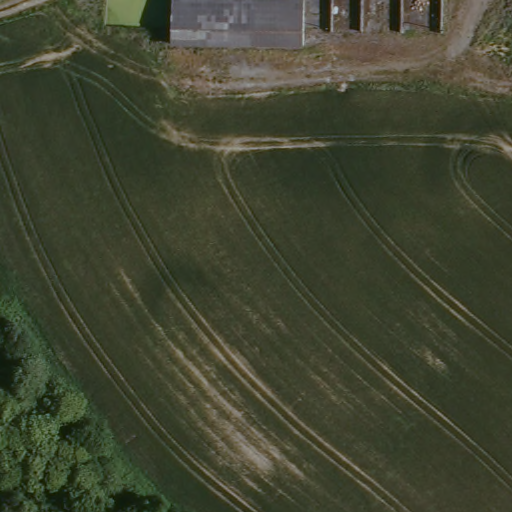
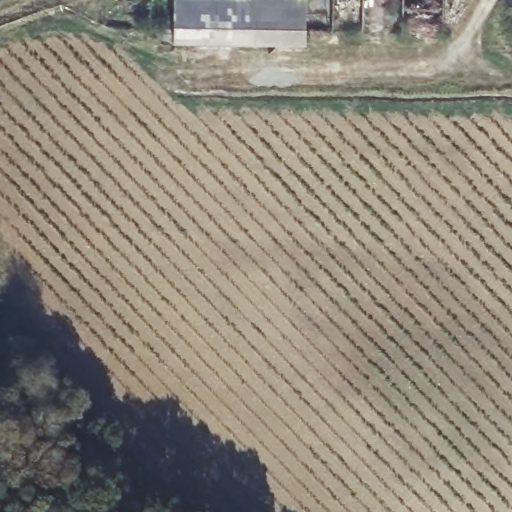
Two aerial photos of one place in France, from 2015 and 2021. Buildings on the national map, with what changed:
unchanged [(168,47),(168,0),(208,0),(248,0),(248,47),(168,47)]
unchanged [(301,46),(248,47),(248,0),(301,0),(301,46)]

